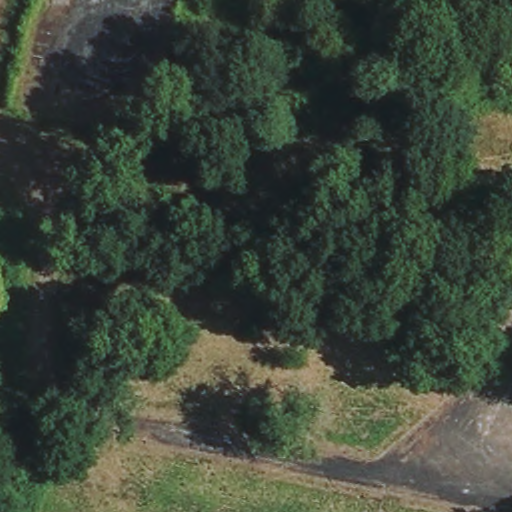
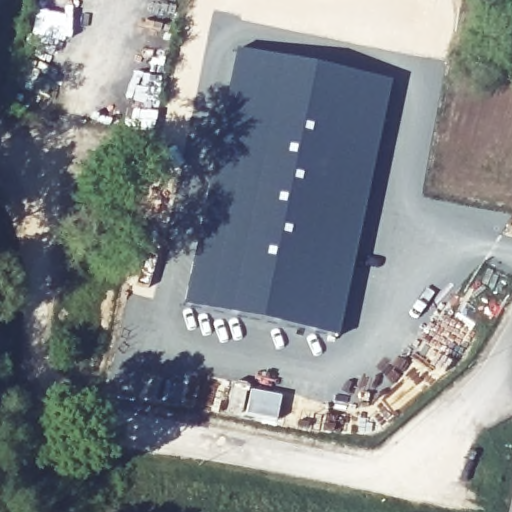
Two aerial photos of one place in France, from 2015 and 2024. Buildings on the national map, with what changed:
new [(202,205),(219,146),(227,89),(234,49),(391,80),(337,337),(182,304),(202,205)]
new [(248,388),(282,394),(277,420),(243,414),(248,388)]

